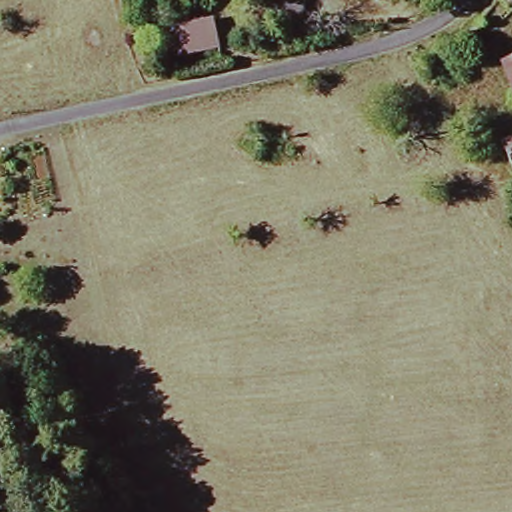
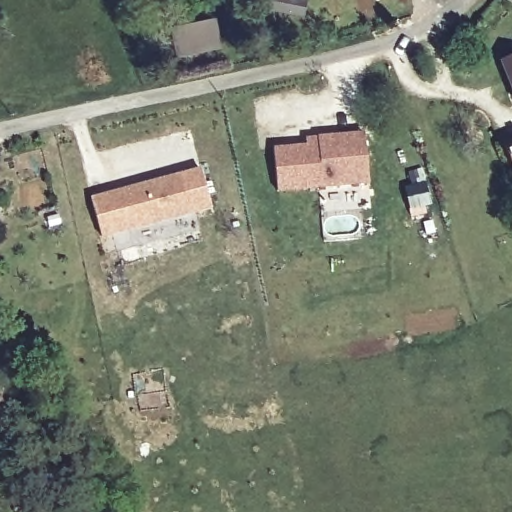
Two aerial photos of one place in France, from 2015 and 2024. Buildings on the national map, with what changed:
unchanged [(507,11),(496,0),(512,0),(512,6),(507,11)]
unchanged [(169,26),(213,19),(220,48),(177,57),(169,26)]
unchanged [(512,60),(512,85),(505,63),(512,60)]
unchanged [(507,134),(512,133),(512,148),(507,134)]
new [(277,194),(275,150),(306,146),(305,139),(317,138),(364,134),(369,185),(322,190),(277,194)]
new [(91,199),(202,169),(212,210),(101,240),(91,199)]

